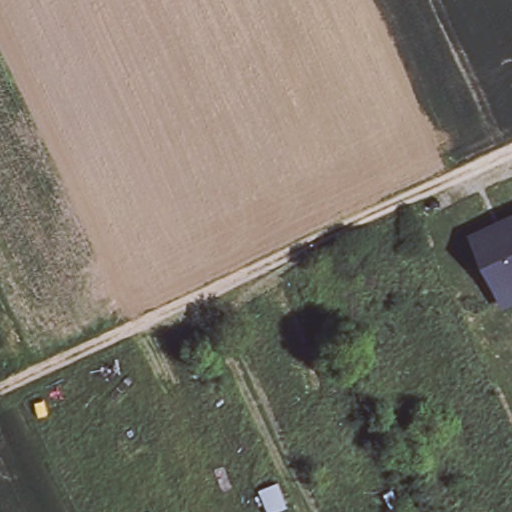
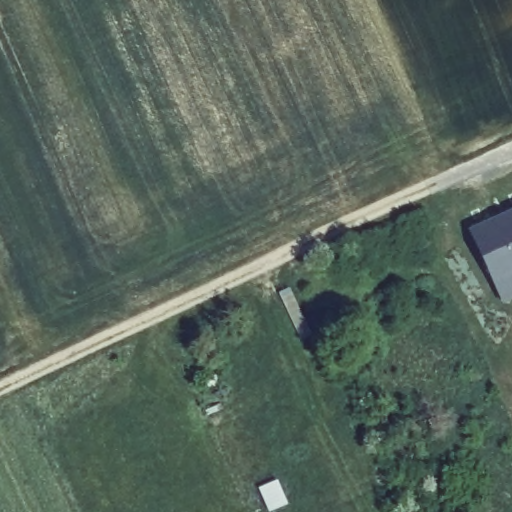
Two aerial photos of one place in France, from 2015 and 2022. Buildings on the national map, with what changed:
unchanged [(512,213),(512,296),(504,300),(473,231),(512,213)]

